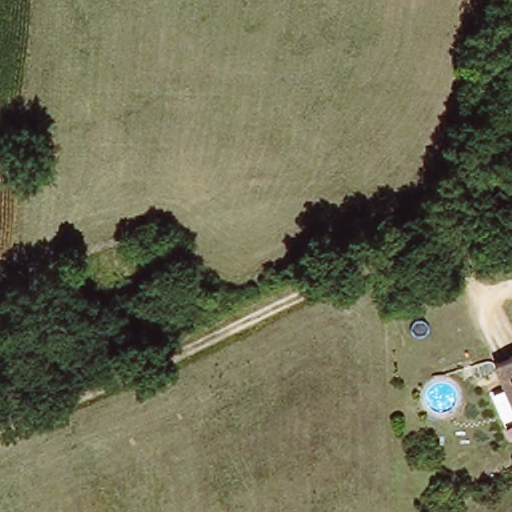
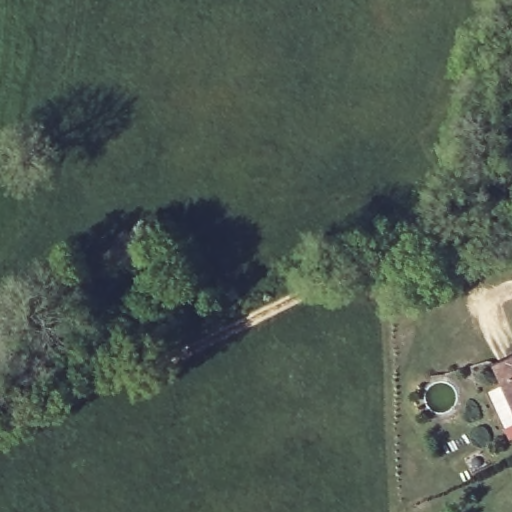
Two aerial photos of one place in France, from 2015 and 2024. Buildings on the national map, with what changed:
unchanged [(489,360),(512,350),(512,410),(489,360)]

